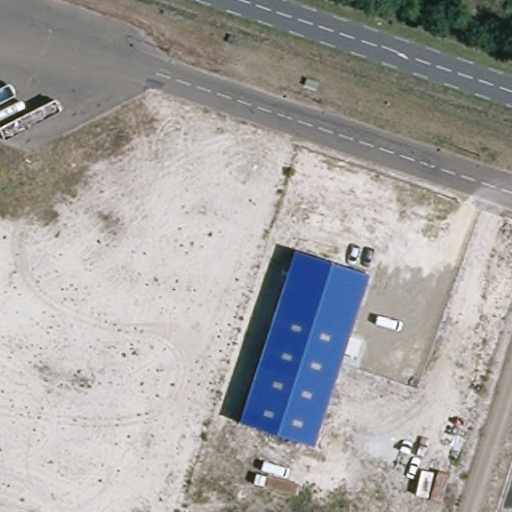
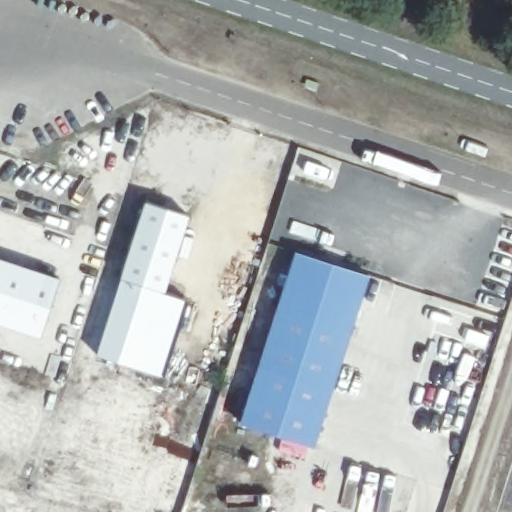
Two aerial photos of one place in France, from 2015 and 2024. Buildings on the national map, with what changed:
new [(141,199),(182,213),(157,290),(183,299),(158,376),(91,354),(141,199)]
unchanged [(293,248),(365,272),(309,443),(237,420),(293,248)]
new [(40,337),(0,324),(0,257),(60,277),(40,337)]

